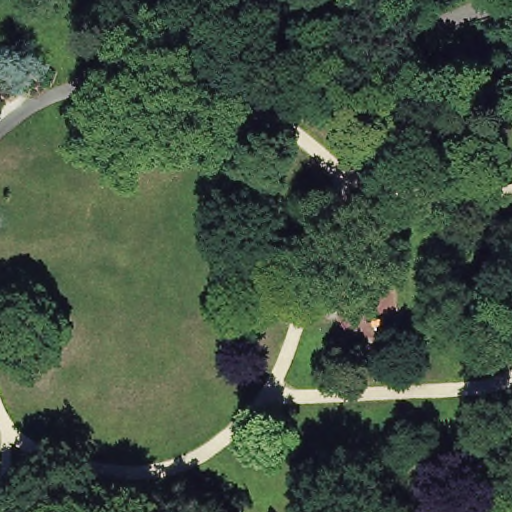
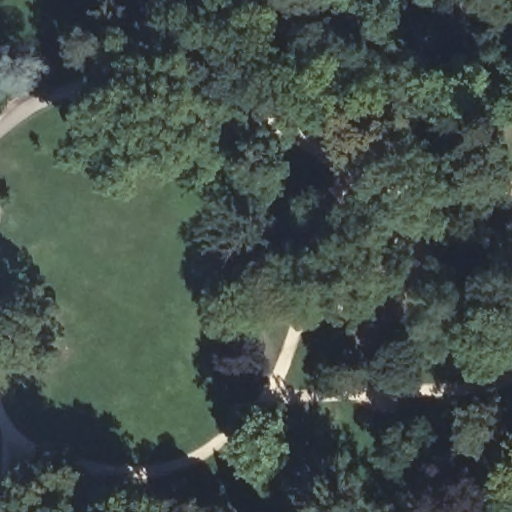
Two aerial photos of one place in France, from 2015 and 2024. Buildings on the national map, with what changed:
[]

